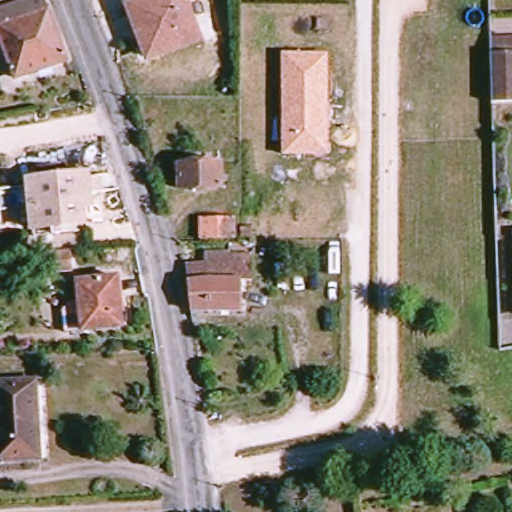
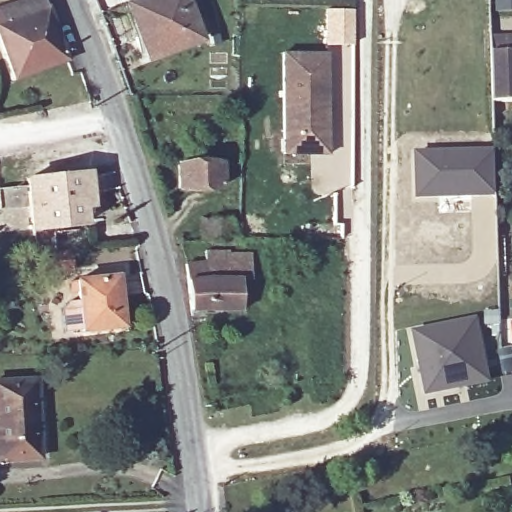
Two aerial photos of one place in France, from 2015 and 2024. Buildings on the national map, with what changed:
unchanged [(44,0),(64,58),(15,75),(0,36),(0,7),(20,0),(44,0)]
unchanged [(186,0),(201,40),(152,60),(130,5),(143,0),(186,0)]
unchanged [(494,100),(492,49),(491,35),(512,35),(512,99),(494,100)]
unchanged [(328,53),(327,152),(281,153),(281,53),(328,53)]
new [(493,147),(494,197),(414,199),(413,149),(493,147)]
unchanged [(175,156),(176,169),(160,169),(160,157),(175,156)]
unchanged [(225,171),(224,195),(181,195),(180,172),(225,171)]
unchanged [(90,172),(93,203),(85,204),(85,221),(33,227),(29,177),(90,172)]
unchanged [(67,252),(68,269),(43,268),(44,253),(67,252)]
unchanged [(256,295),(242,294),(242,313),(190,314),(183,268),(203,266),(203,255),(227,254),(227,257),(243,257),(242,279),(256,279),(256,295)]
unchanged [(116,274),(122,324),(82,329),(79,278),(116,274)]
new [(458,386),(425,392),(413,330),(475,318),(483,361),(487,380),(458,386)]
unchanged [(0,382),(33,380),(37,459),(0,460),(0,382)]

